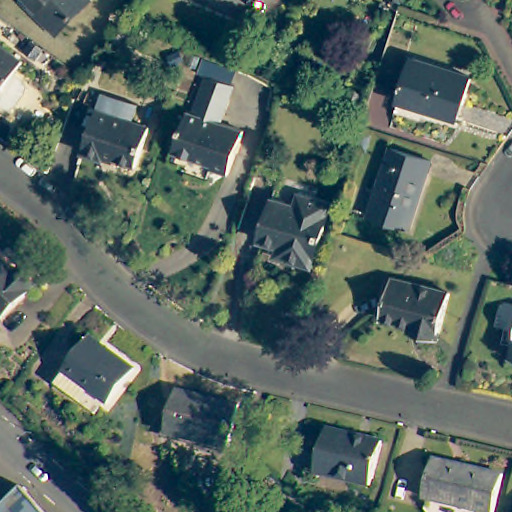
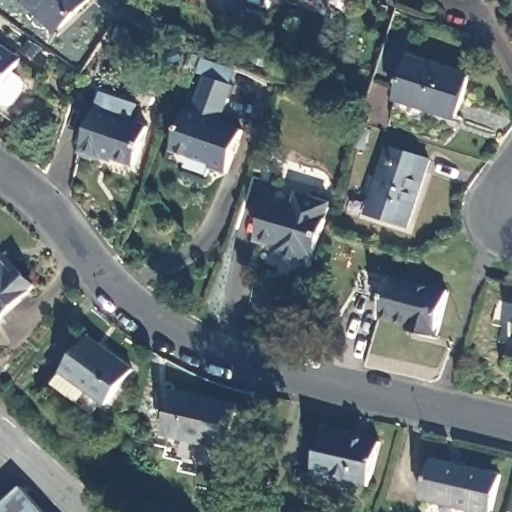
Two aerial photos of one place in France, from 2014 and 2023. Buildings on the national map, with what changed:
unchanged [(18,3),(22,0),(89,0),(90,0),(61,31),(56,37),(18,3)]
unchanged [(9,118),(0,112),(0,45),(16,56),(7,68),(32,85),(9,118)]
unchanged [(470,76),(455,119),(397,99),(412,56),(470,76)]
unchanged [(232,86),(220,122),(191,112),(205,76),(232,86)]
unchanged [(130,124),(147,130),(133,169),(102,157),(100,163),(79,155),(96,111),(97,108),(90,105),(95,91),(102,94),(137,107),(130,124)]
unchanged [(242,130),(226,173),(209,168),(210,163),(209,158),(189,152),(188,157),(172,151),(186,110),(191,112),(220,122),(242,130)]
unchanged [(427,160),(408,227),(367,215),(388,147),(427,160)]
unchanged [(278,246),(260,241),(274,198),(296,205),(300,193),(317,198),(332,203),(312,266),(283,257),(276,255),(278,246)]
unchanged [(13,272),(30,288),(0,319),(0,267),(9,276),(13,272)]
unchanged [(452,294),(438,339),(419,334),(421,327),(382,315),(394,277),(452,294)]
unchanged [(503,358),(512,321),(512,360),(503,358)]
unchanged [(133,371),(97,419),(51,385),(87,337),(133,371)]
unchanged [(236,407),(226,452),(165,438),(175,394),(236,407)]
unchanged [(380,444),(370,488),(314,475),(323,431),(380,444)]
unchanged [(496,512),(473,512),(427,501),(436,461),(504,476),(496,512)]
unchanged [(0,512),(0,507),(4,512),(0,512)]

